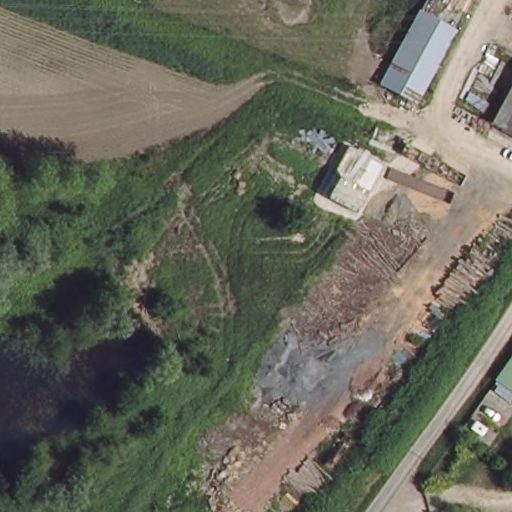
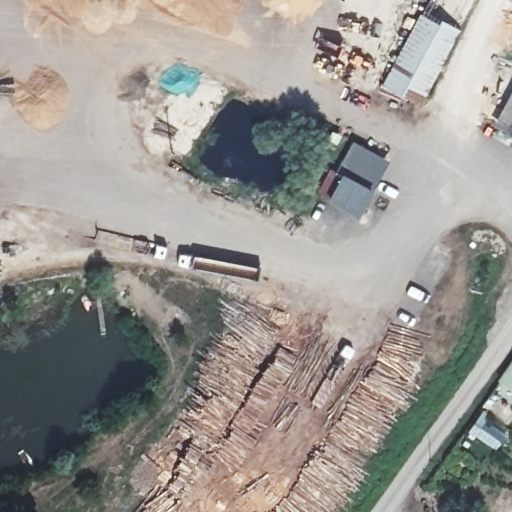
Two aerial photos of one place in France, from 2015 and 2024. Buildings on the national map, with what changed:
unchanged [(445,0),(469,13),(420,100),(384,81),(429,0),(445,0)]
unchanged [(512,117),(512,132),(505,129),(512,117)]
new [(327,201),(329,197),(317,191),(327,169),(335,172),(352,143),(389,161),(357,217),(327,201)]
unchanged [(512,356),(512,382),(500,373),(512,356)]

